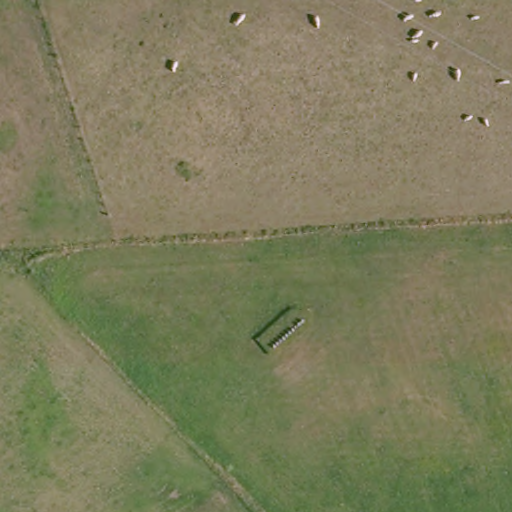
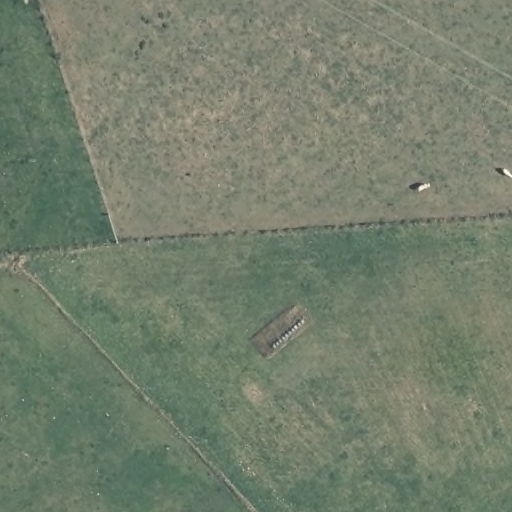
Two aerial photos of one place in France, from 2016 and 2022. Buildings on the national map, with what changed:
[]

